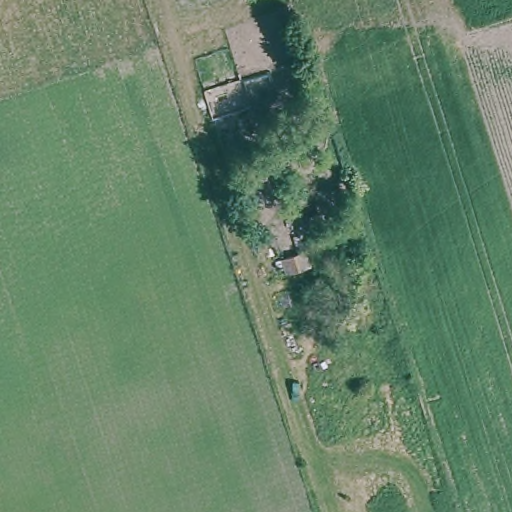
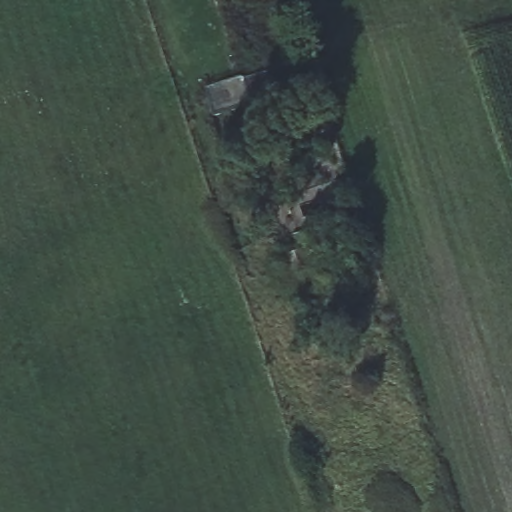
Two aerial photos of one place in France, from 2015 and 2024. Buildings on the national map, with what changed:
[]

